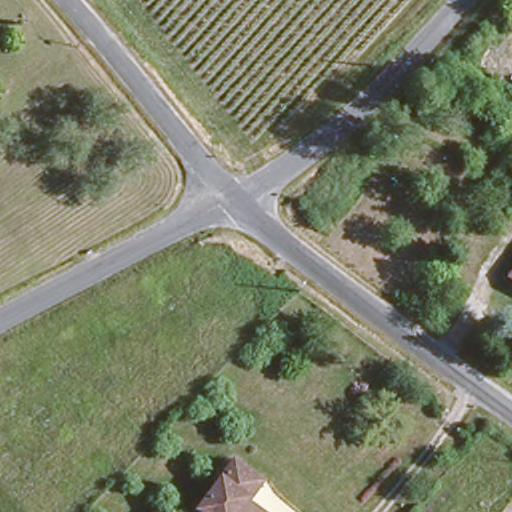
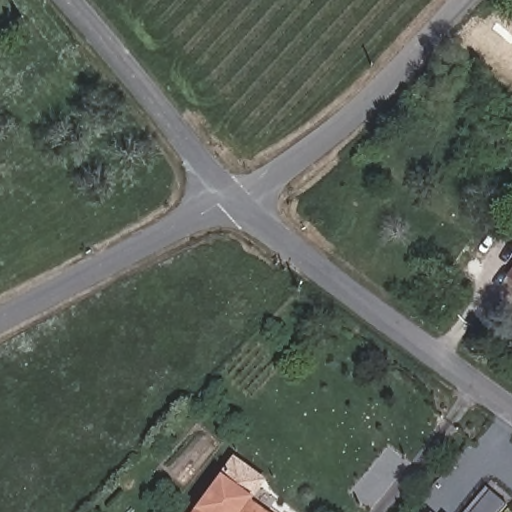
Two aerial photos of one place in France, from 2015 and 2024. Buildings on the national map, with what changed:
unchanged [(195,509),(233,459),(262,481),(248,499),(266,512),(194,512),(195,509)]
new [(486,489),(505,505),(500,512),(469,512),(486,489)]

